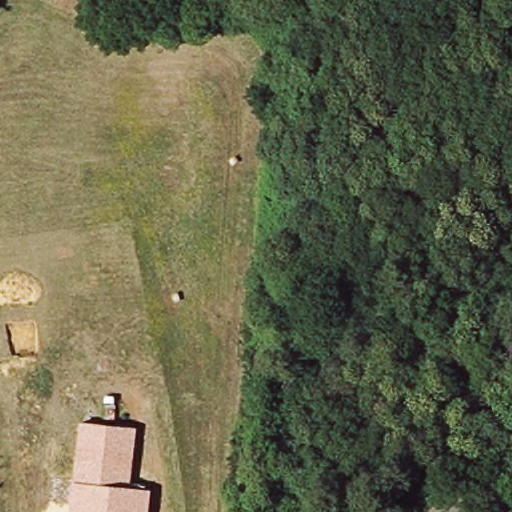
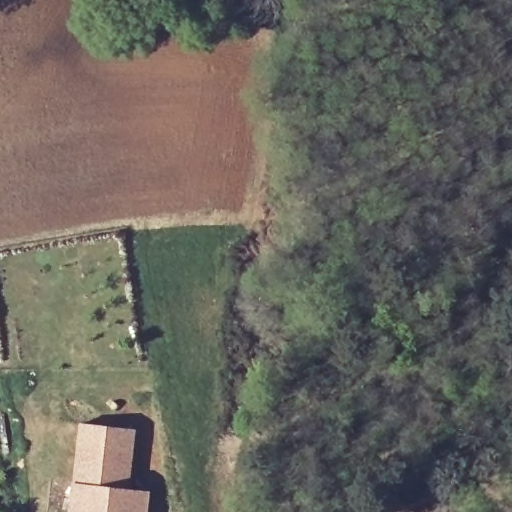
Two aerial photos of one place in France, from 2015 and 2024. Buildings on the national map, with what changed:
unchanged [(135,429),(129,487),(149,490),(147,512),(70,512),(79,423),(135,429)]

